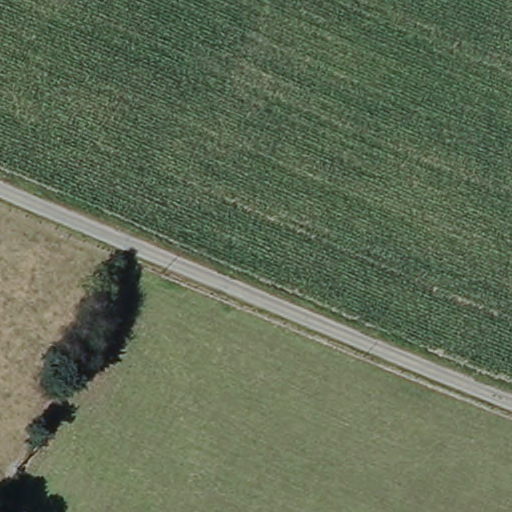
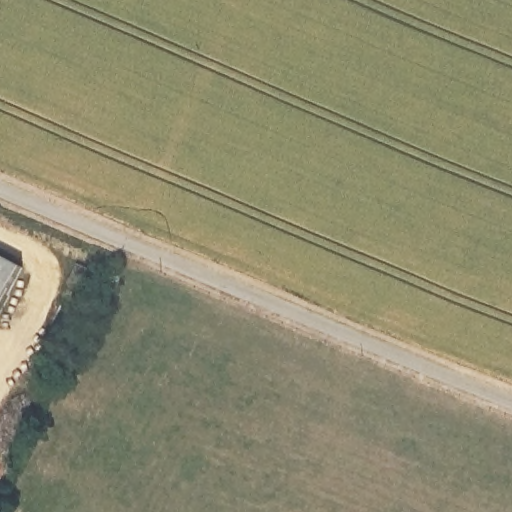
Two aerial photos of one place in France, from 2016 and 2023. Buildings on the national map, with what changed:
new [(21,267),(0,308),(0,256),(21,267)]

